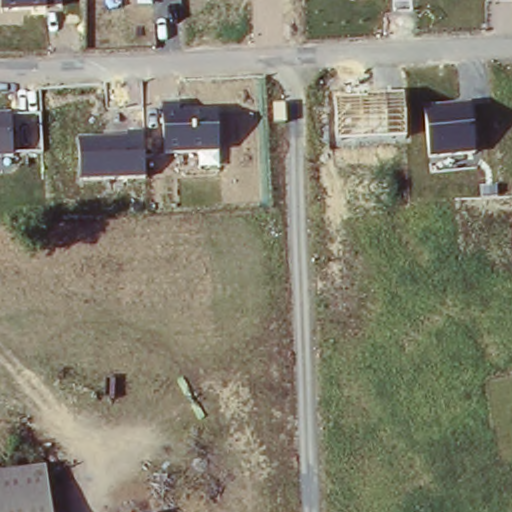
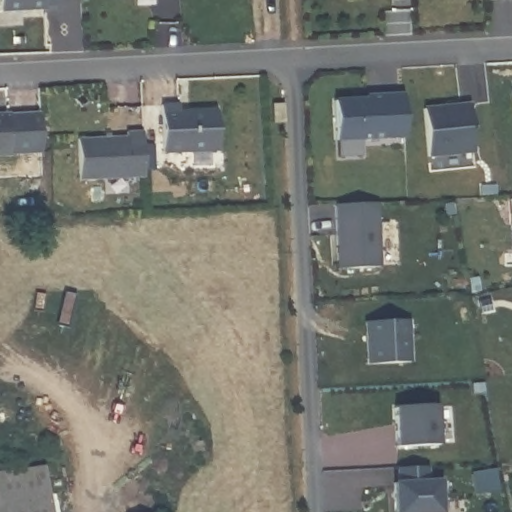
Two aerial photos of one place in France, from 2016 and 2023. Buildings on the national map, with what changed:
unchanged [(0,13),(0,0),(62,0),(62,10),(0,13)]
unchanged [(407,138),(335,143),(332,102),(365,100),(365,96),(403,93),(407,138)]
unchanged [(477,155),(428,160),(423,110),(472,104),(477,155)]
unchanged [(221,155),(162,158),(160,106),(179,105),(180,113),(219,110),(221,155)]
unchanged [(0,159),(0,114),(12,114),(15,158),(0,159)]
unchanged [(80,183),(76,141),(126,139),(126,135),(144,133),(146,179),(80,183)]
new [(378,202),(381,266),(340,268),(336,205),(378,202)]
new [(409,320),(411,362),(368,365),(365,322),(409,320)]
new [(439,405),(440,445),(397,446),(395,406),(439,405)]
new [(427,467),(428,481),(441,480),(442,512),(396,512),(395,483),(400,483),(398,468),(427,467)]
unchanged [(44,469),(50,512),(0,512),(0,475),(44,469)]

